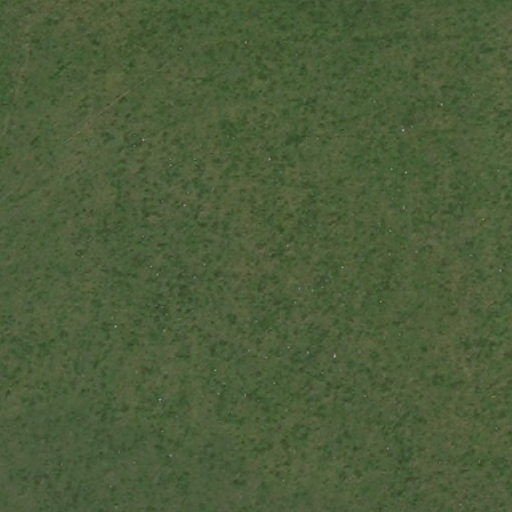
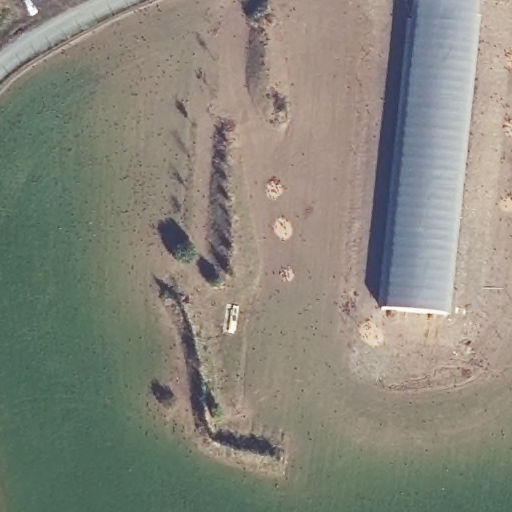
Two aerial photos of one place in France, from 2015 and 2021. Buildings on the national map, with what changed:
new [(414,0),(476,0),(443,315),(382,307),(414,0)]

